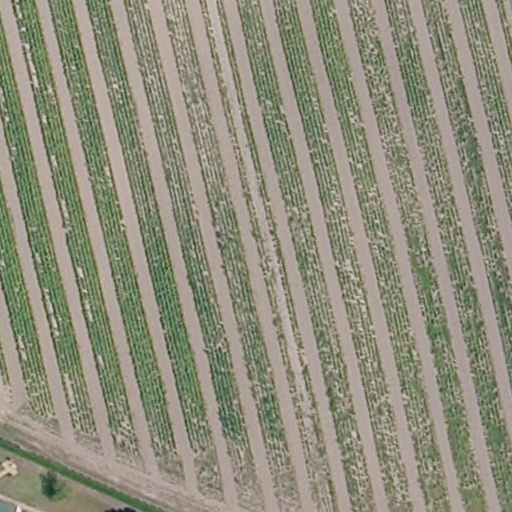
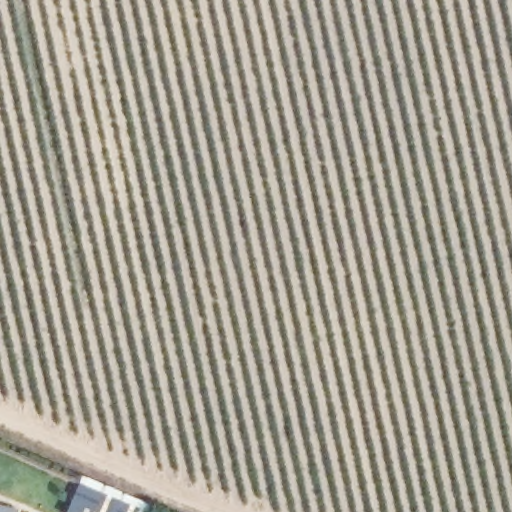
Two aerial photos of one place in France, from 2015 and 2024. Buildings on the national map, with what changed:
new [(82,475),(145,503),(141,512),(65,512),(82,475)]
new [(19,508),(18,512),(0,512),(0,503),(19,508)]

